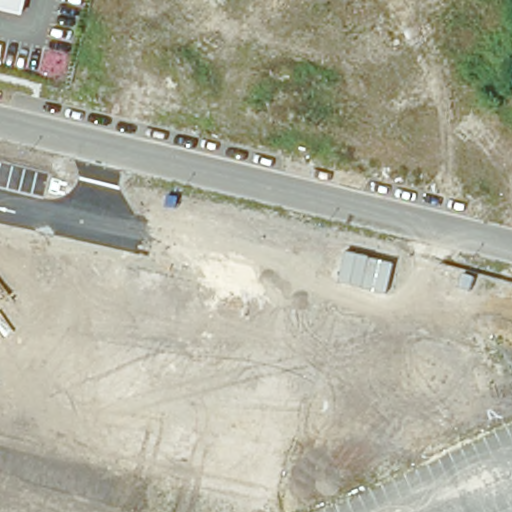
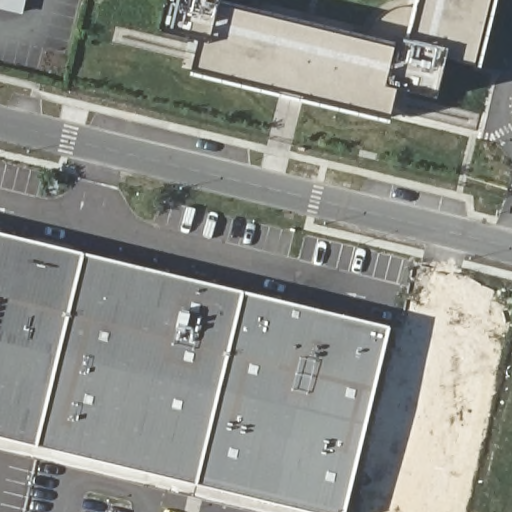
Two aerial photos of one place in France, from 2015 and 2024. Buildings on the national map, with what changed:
unchanged [(24,16),(0,10),(0,0),(27,0),(24,16)]
new [(448,59),(437,101),(398,91),(392,120),(192,72),(200,42),(161,32),(168,0),(222,0),(221,5),(397,48),(399,37),(411,40),(421,0),(492,0),(476,66),(448,59)]
new [(391,329),(348,512),(257,512),(197,497),(35,459),(0,450),(0,231),(86,253),(247,293),(391,329)]

